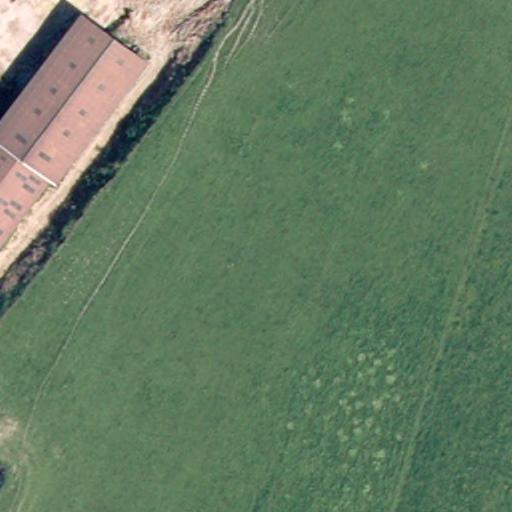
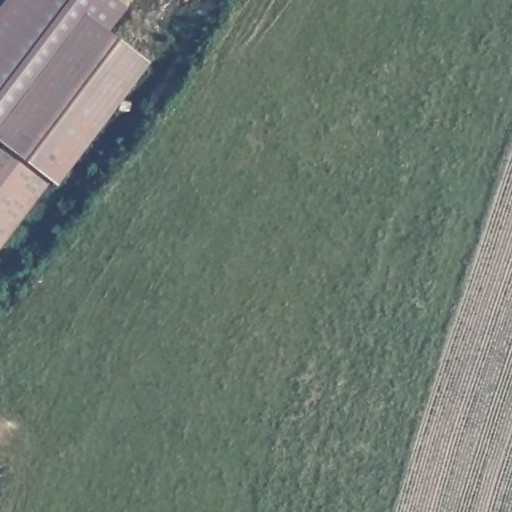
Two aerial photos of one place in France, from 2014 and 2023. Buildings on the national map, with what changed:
new [(88,16),(0,132),(0,2),(1,0),(121,0),(127,5),(110,32),(88,16)]
unchanged [(160,70),(68,192),(60,185),(0,262),(0,132),(88,16),(160,70)]

